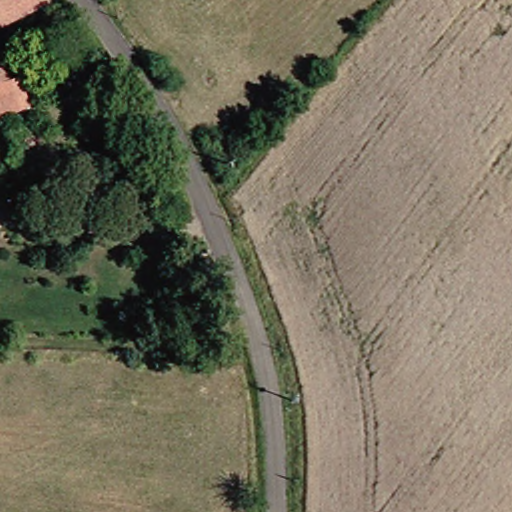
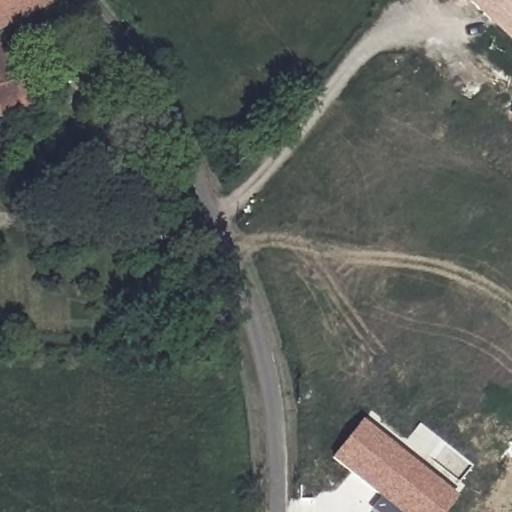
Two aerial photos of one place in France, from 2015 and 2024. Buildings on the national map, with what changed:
unchanged [(1,31),(0,29),(0,0),(53,0),(56,5),(1,31)]
new [(461,0),(512,0),(512,50),(461,0)]
unchanged [(28,80),(24,81),(31,108),(19,112),(8,116),(4,109),(0,110),(0,36),(14,74),(25,70),(28,80)]
new [(380,498),(331,459),(361,420),(457,497),(445,512),(370,512),(369,511),(380,498)]

